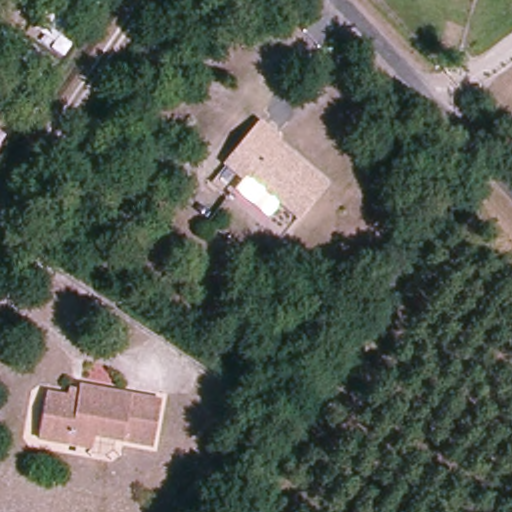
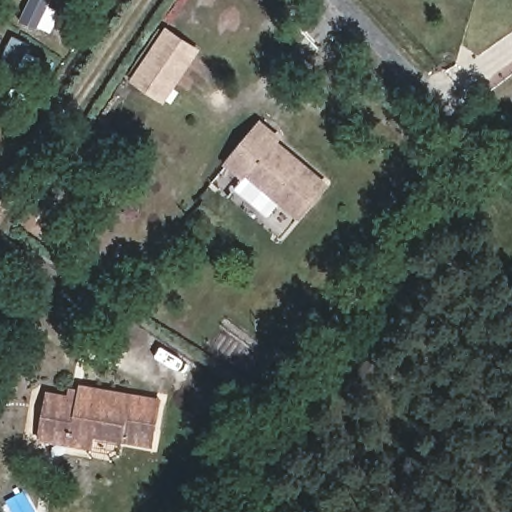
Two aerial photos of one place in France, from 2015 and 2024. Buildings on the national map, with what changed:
new [(163,104),(130,81),(167,28),(199,49),(163,104)]
unchanged [(251,175),(245,181),(226,164),(260,121),(280,139),(276,146),(326,189),(301,220),(251,175)]
unchanged [(65,442),(40,435),(47,391),(81,397),(83,386),(130,397),(158,403),(154,429),(151,446),(92,433),(89,447),(65,442)]

